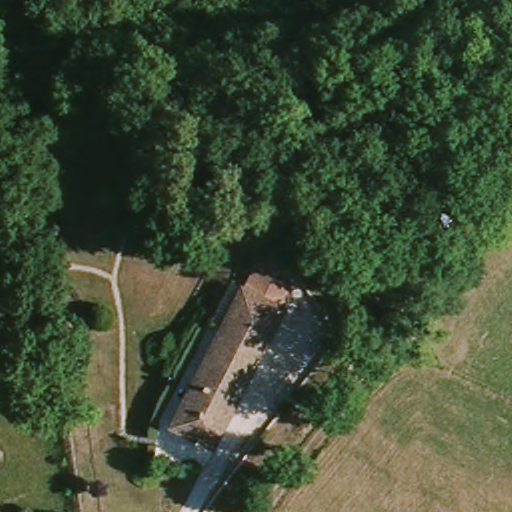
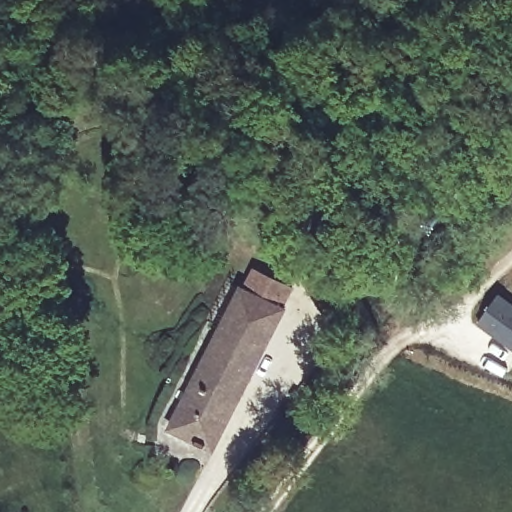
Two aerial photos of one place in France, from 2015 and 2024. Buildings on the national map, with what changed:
unchanged [(325,222),(337,215),(348,208),(355,204),(364,217),(356,222),(344,230),(333,236),(325,222)]
unchanged [(248,286),(258,267),(295,286),(285,306),(287,307),(218,439),(201,430),(178,418),(192,391),(247,285),(248,286)]
new [(512,305),(512,349),(477,323),(497,294),(512,305)]

